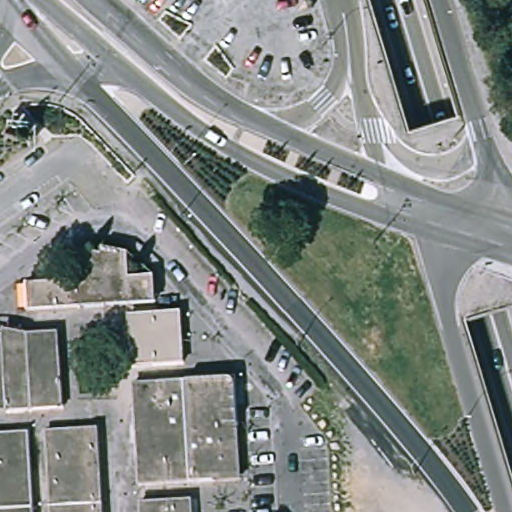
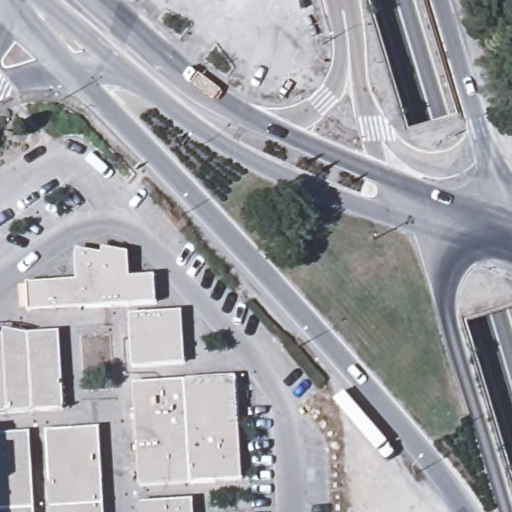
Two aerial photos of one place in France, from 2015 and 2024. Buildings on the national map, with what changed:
unchanged [(77,282),(78,255),(103,260),(105,253),(127,257),(130,280),(155,278),(157,306),(30,311),(30,282),(77,282)]
unchanged [(177,317),(180,366),(125,366),(123,317),(177,317)]
unchanged [(30,338),(40,337),(50,337),(55,337),(60,413),(0,415),(0,331),(18,337),(30,338)]
unchanged [(231,387),(238,490),(134,492),(128,387),(231,387)]
unchanged [(97,433),(100,512),(45,512),(42,436),(97,433)]
unchanged [(27,512),(0,512),(0,438),(23,437),(27,512)]
unchanged [(195,502),(195,512),(136,512),(136,507),(195,502)]

